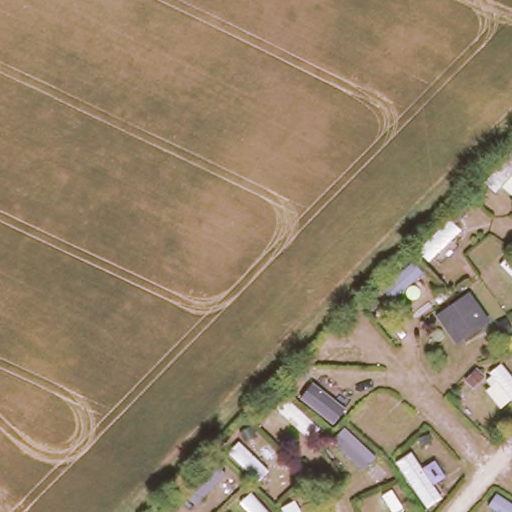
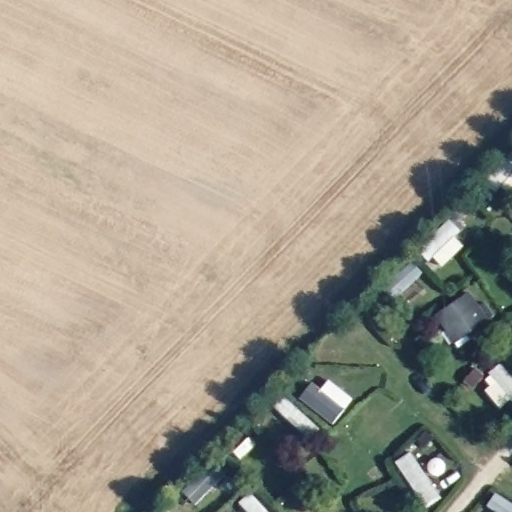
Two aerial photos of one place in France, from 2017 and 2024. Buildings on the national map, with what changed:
unchanged [(435,322),(467,297),(490,323),(455,346),(435,322)]

